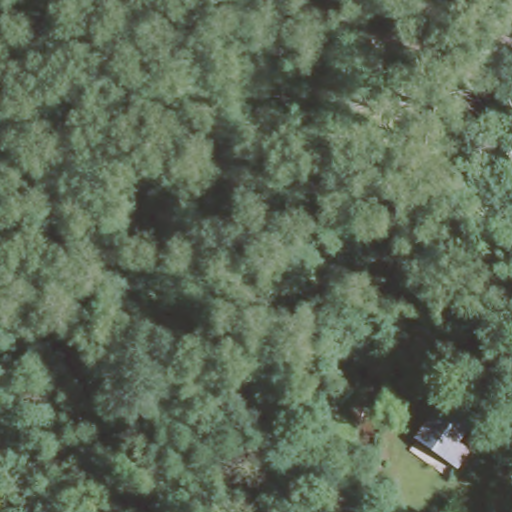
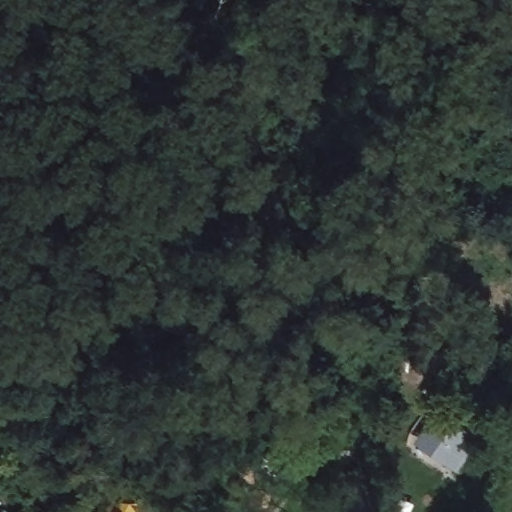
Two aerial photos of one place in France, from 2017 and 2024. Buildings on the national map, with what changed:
unchanged [(415,437),(454,386),(479,405),(441,457),(415,437)]

